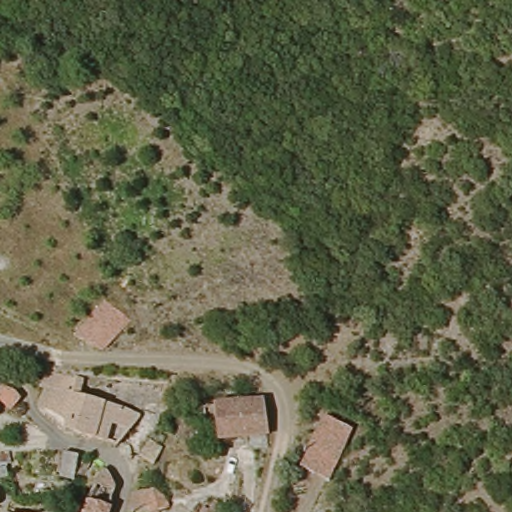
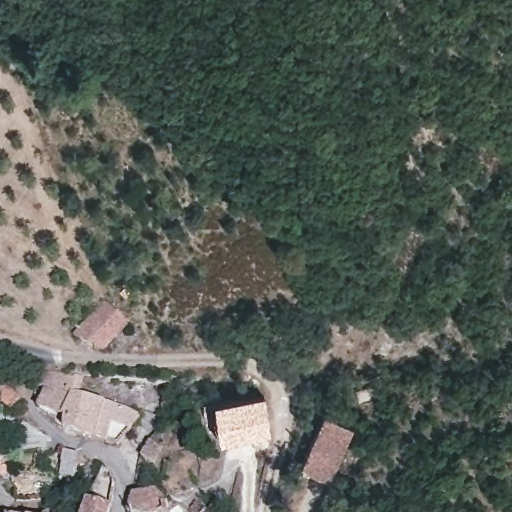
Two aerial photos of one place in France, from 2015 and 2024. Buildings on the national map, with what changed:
unchanged [(131,325),(93,355),(67,339),(100,304),(131,325)]
unchanged [(50,429),(51,416),(24,404),(34,384),(86,400),(122,411),(123,414),(99,443),(50,429)]
unchanged [(0,394),(10,399),(16,407),(6,417),(0,413),(0,394)]
unchanged [(201,413),(201,405),(234,399),(263,398),(266,435),(216,439),(214,422),(202,423),(201,413)]
unchanged [(327,410),(354,424),(330,477),(303,465),(327,410)]
unchanged [(161,432),(163,437),(159,442),(161,445),(153,458),(138,452),(143,445),(154,428),(161,432)]
unchanged [(0,450),(8,448),(9,465),(0,465),(0,450)]
unchanged [(77,451),(74,474),(56,473),(60,448),(77,451)]
unchanged [(103,464),(111,473),(114,481),(109,503),(106,512),(78,512),(83,499),(103,464)]
unchanged [(126,508),(131,488),(151,489),(161,495),(167,505),(146,509),(126,508)]
unchanged [(224,506),(222,512),(207,512),(212,500),(224,506)]
unchanged [(185,512),(179,512),(183,509),(185,512)]

